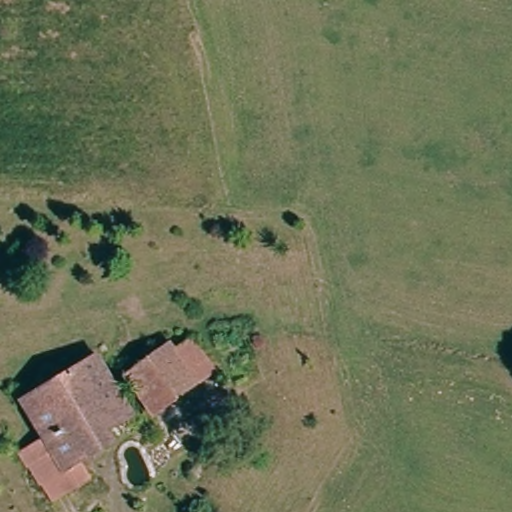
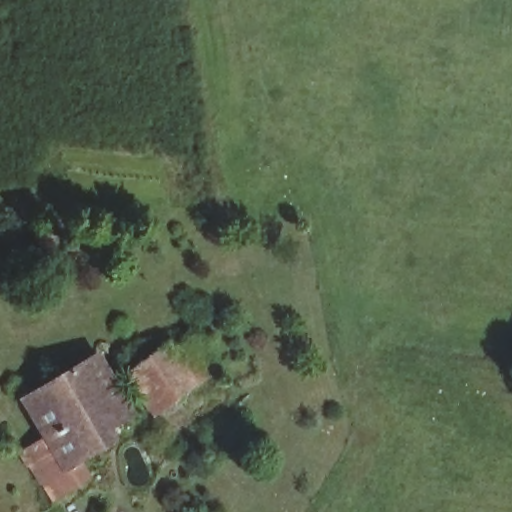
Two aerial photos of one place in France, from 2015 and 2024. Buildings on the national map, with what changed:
unchanged [(163,338),(170,347),(186,333),(211,367),(154,411),(121,370),(163,338)]
unchanged [(85,456),(80,462),(89,475),(72,487),(64,492),(44,456),(50,450),(19,398),(50,377),(85,349),(125,410),(114,418),(119,428),(85,456)]

